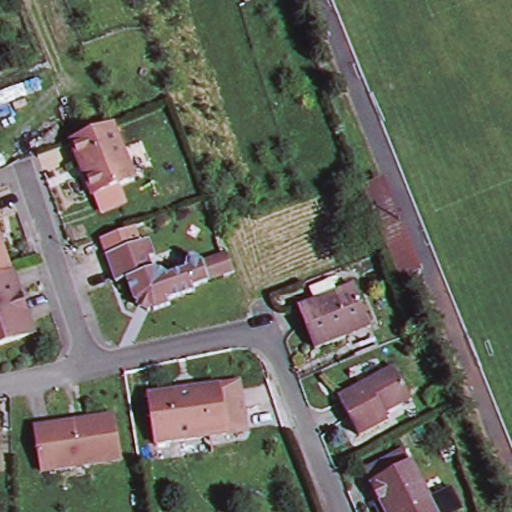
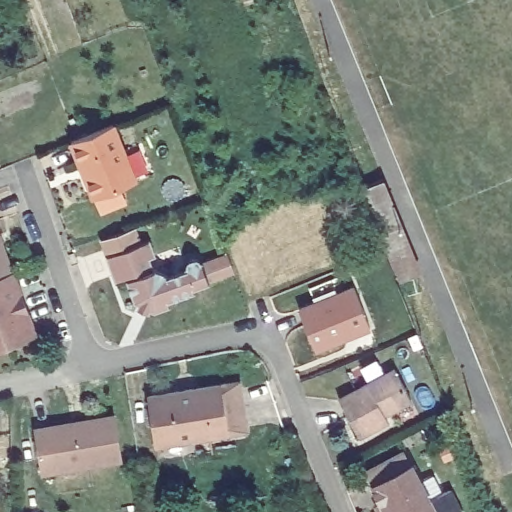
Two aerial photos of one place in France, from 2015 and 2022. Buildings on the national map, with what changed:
unchanged [(70,142),(76,140),(112,125),(134,181),(92,197),(82,175),(78,164),(70,142)]
unchanged [(400,281),(376,220),(363,187),(383,180),(396,211),(420,273),(400,281)]
unchanged [(194,296),(167,305),(169,310),(154,315),(149,313),(147,317),(137,312),(139,308),(134,306),(127,284),(115,288),(106,260),(100,245),(129,235),(134,250),(147,245),(154,261),(149,263),(152,275),(154,275),(165,280),(167,282),(185,276),(185,273),(187,272),(187,271),(187,270),(187,268),(188,267),(189,266),(190,265),(192,265),(193,264),(195,264),(196,265),(197,265),(199,266),(200,268),(202,267),(225,258),(234,277),(208,286),(192,292),(194,296)]
unchanged [(0,282),(0,249),(10,278),(0,282)]
unchanged [(17,305),(19,313),(22,312),(25,320),(32,340),(0,352),(0,282),(10,278),(20,305),(17,305)]
unchanged [(315,350),(300,310),(316,303),(310,289),(332,281),(337,295),(355,288),(370,330),(354,335),(347,338),(315,350)]
unchanged [(410,402),(384,416),(387,421),(357,437),(338,400),(385,375),(394,370),(410,402)]
unchanged [(147,396),(220,385),(237,382),(244,431),(227,435),(155,445),(147,396)]
unchanged [(120,460),(42,473),(34,430),(113,416),(120,460)]
unchanged [(455,440),(460,453),(445,460),(439,446),(455,440)]
unchanged [(360,476),(400,455),(407,469),(425,505),(445,495),(454,512),(373,512),(372,511),(377,509),(367,488),(360,476)]

